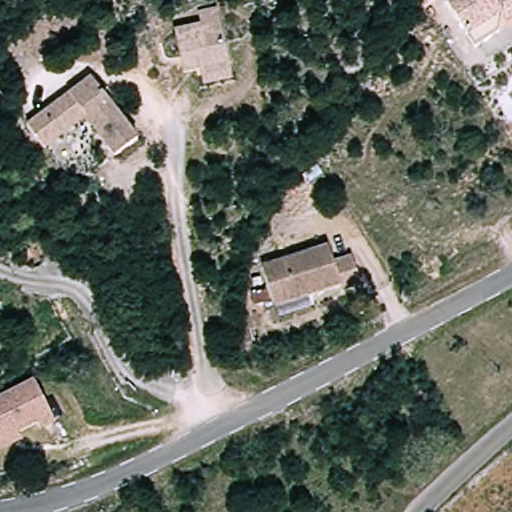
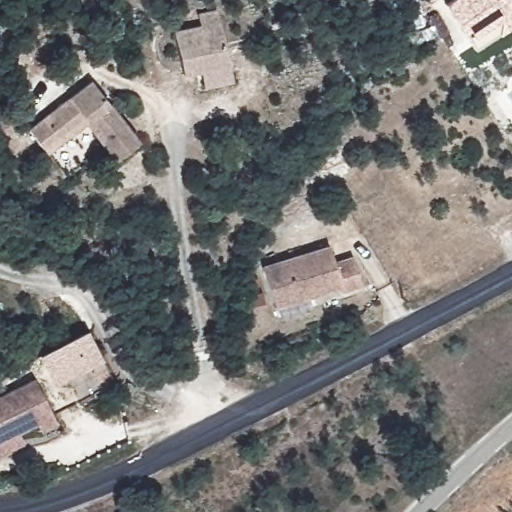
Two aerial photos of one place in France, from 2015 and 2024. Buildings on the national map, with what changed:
unchanged [(505,41),(483,59),(449,18),(469,0),(512,0),(512,35),(505,41)]
unchanged [(199,89),(198,73),(178,76),(174,41),(199,38),(199,23),(219,20),(226,69),(229,86),(199,89)]
unchanged [(33,133),(48,123),(101,91),(143,158),(119,172),(90,127),(63,144),(46,153),(33,133)]
unchanged [(334,290),(331,283),(269,298),(262,258),(325,244),(329,261),(349,258),(356,285),(334,290)]
new [(37,357),(86,330),(103,362),(55,386),(37,357)]
unchanged [(0,402),(35,387),(39,385),(48,407),(58,430),(42,437),(39,430),(19,439),(22,446),(0,455),(0,402)]

